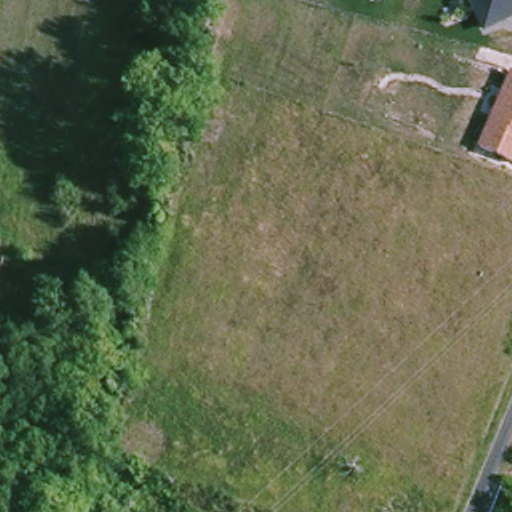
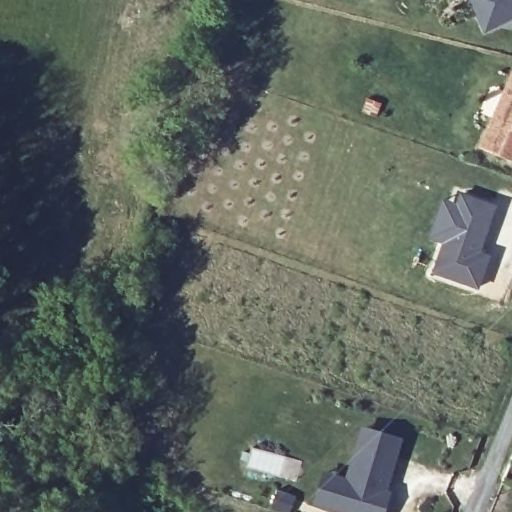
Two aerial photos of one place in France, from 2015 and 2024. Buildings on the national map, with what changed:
unchanged [(483,34),(466,0),(512,0),(512,19),(483,34)]
unchanged [(512,74),(512,163),(477,146),(511,74),(512,74)]
new [(497,206),(482,253),(491,257),(479,290),(432,275),(458,194),(497,206)]
new [(354,451),(361,430),(363,431),(381,437),(396,442),(393,449),(382,485),(377,483),(374,492),(384,495),(379,512),(339,512),(325,508),(312,504),(321,475),(334,479),(344,482),(354,451)]

